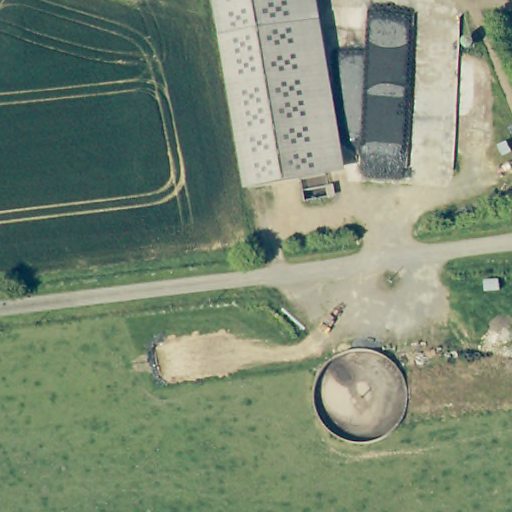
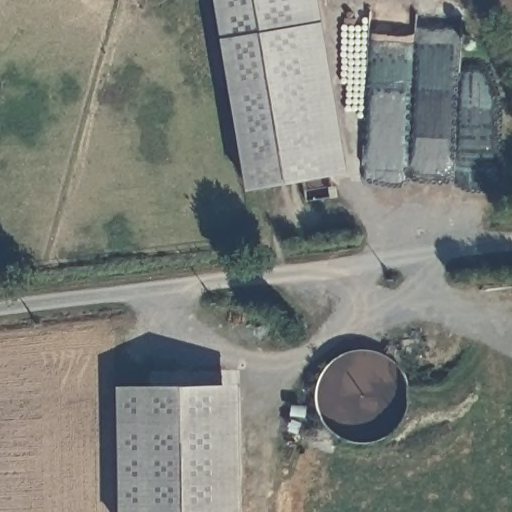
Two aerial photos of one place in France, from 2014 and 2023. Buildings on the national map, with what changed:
unchanged [(332,174),(253,187),(223,0),(304,0),(332,174)]
new [(237,384),(240,512),(121,512),(119,386),(237,384)]

